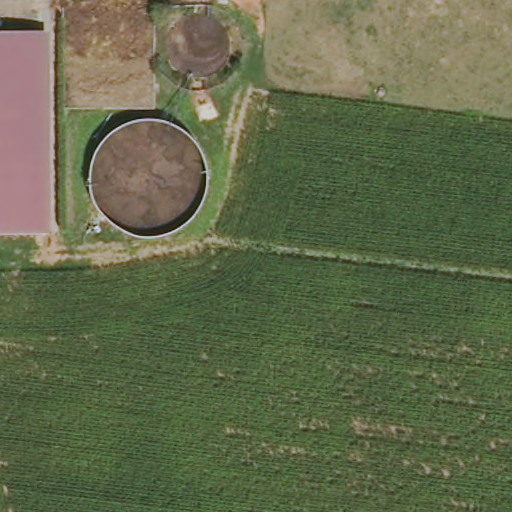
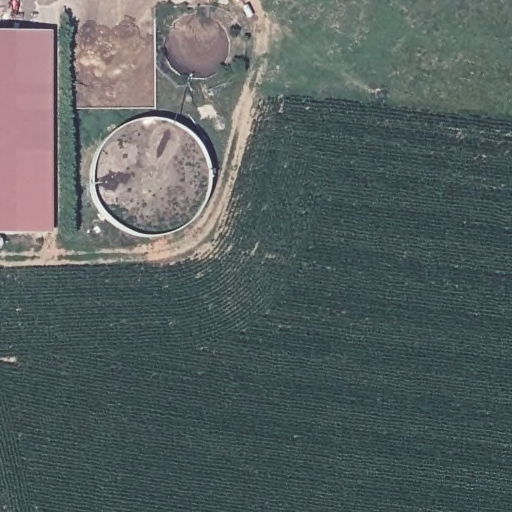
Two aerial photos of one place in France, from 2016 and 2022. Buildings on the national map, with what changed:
unchanged [(48,232),(0,233),(0,32),(48,31),(48,232)]

